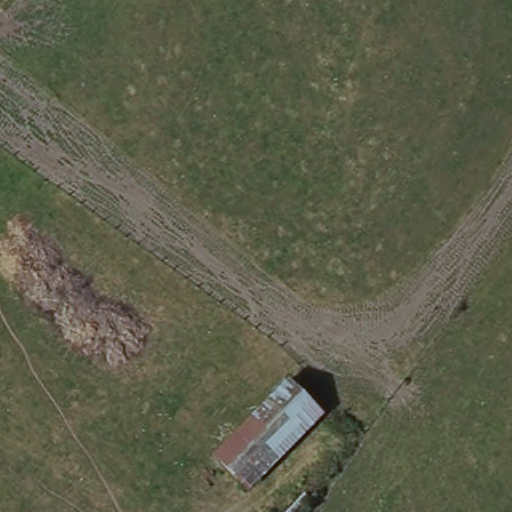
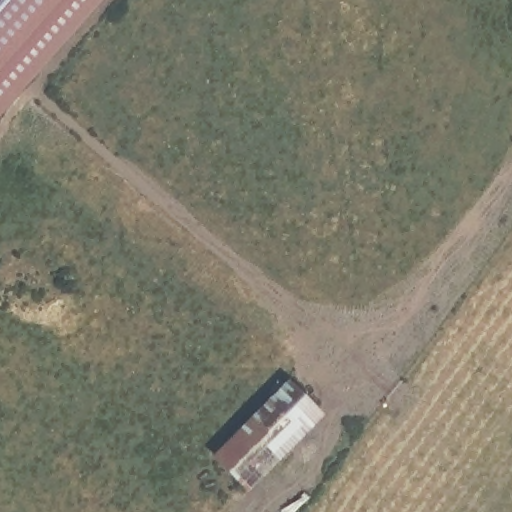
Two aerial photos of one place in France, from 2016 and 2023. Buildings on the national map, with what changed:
new [(0,0),(104,0),(0,117),(0,0)]
unchanged [(285,385),(315,414),(244,487),(213,459),(277,392),(285,385)]

